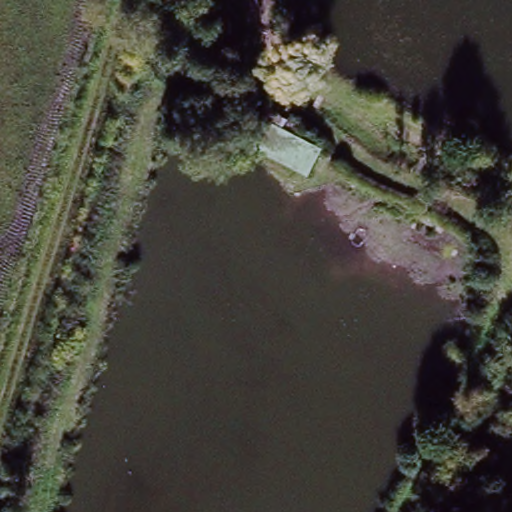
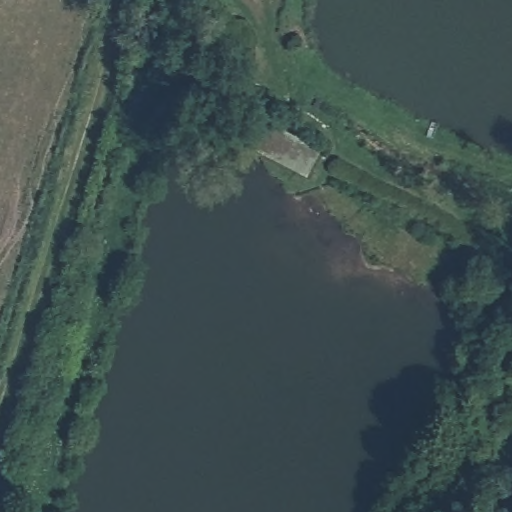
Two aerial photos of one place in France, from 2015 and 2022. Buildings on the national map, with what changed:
unchanged [(257,145),(268,124),(317,146),(305,168),(257,145)]

